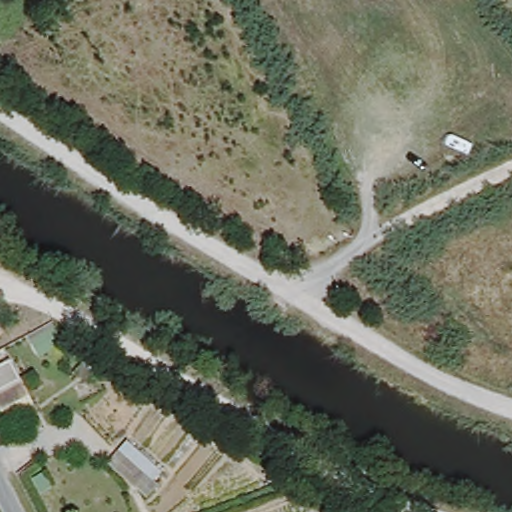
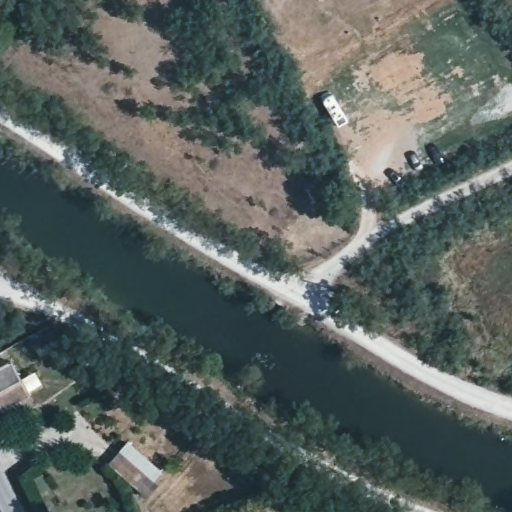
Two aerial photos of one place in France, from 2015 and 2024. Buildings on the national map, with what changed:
unchanged [(0,388),(19,378),(29,396),(3,411),(0,405),(0,388)]
unchanged [(134,491),(110,471),(132,445),(157,468),(134,491)]

